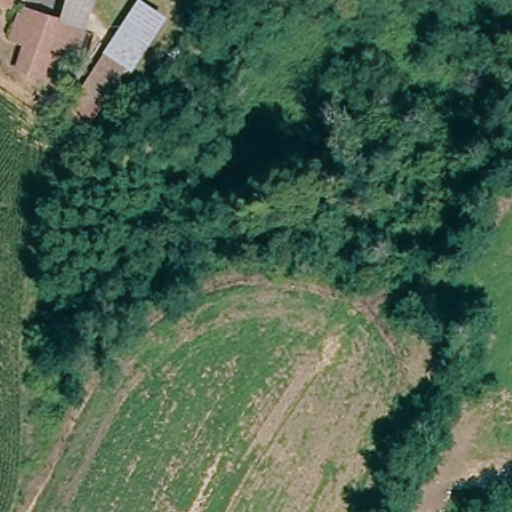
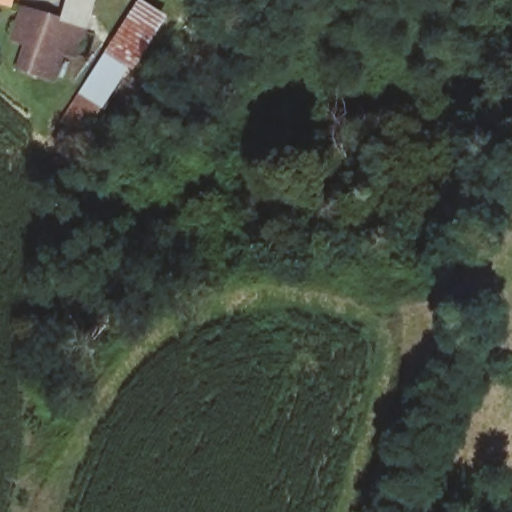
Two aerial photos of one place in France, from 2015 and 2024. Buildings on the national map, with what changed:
unchanged [(0,1),(0,0),(7,0),(6,3),(0,1)]
unchanged [(31,43),(19,36),(30,6),(56,19),(63,4),(64,0),(98,0),(69,63),(56,55),(45,79),(18,66),(31,43)]
unchanged [(69,110),(93,71),(138,0),(144,0),(162,11),(114,86),(89,124),(76,115),(69,110)]

